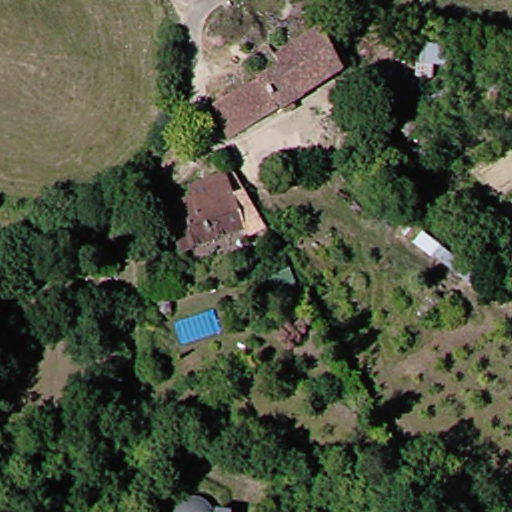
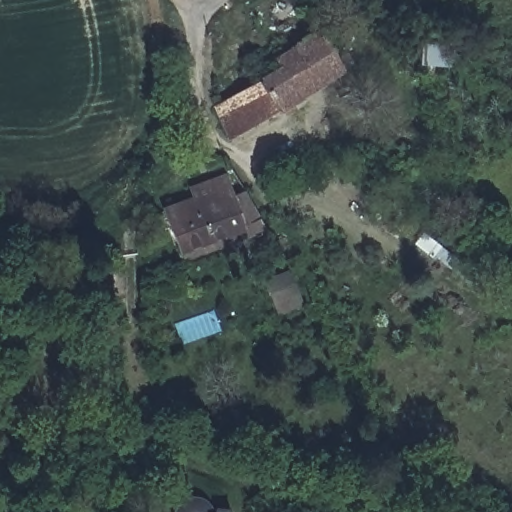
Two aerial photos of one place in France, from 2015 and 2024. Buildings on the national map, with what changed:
unchanged [(206,102),(269,70),(264,61),(317,34),(336,72),(288,97),(290,102),(223,136),(207,105),(206,102)]
unchanged [(192,247),(177,202),(198,195),(194,184),(238,169),(248,198),(261,194),(268,212),(254,217),(257,224),(192,247)]

